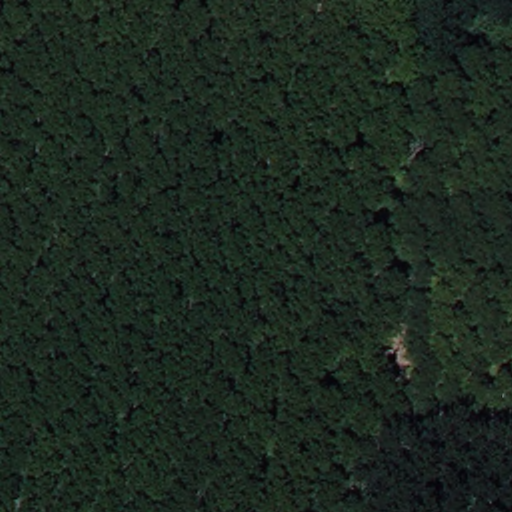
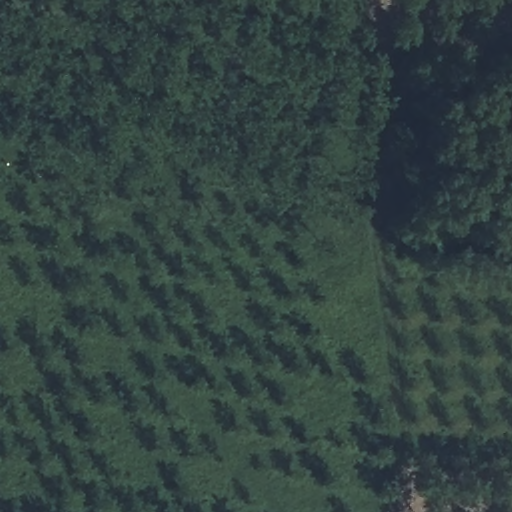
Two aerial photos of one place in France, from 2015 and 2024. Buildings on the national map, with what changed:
[]

